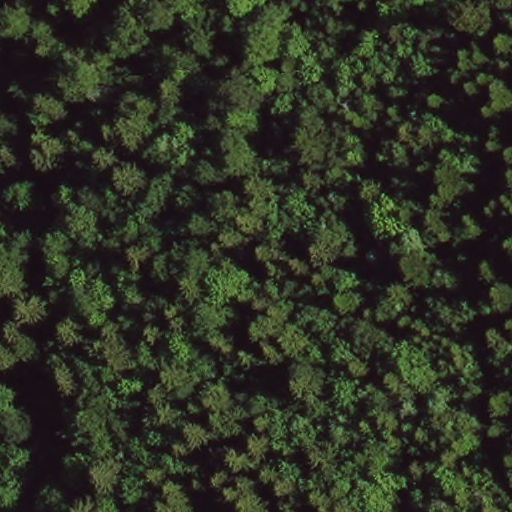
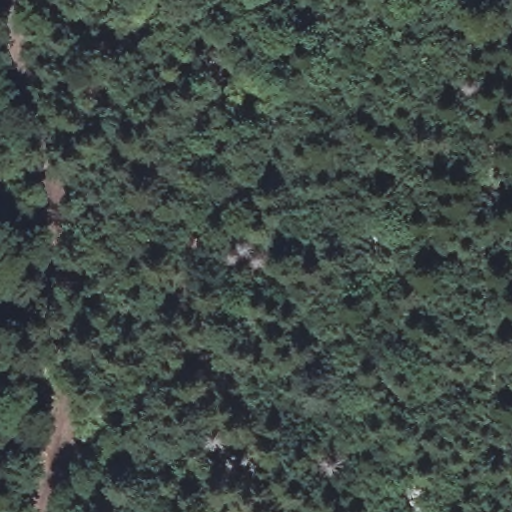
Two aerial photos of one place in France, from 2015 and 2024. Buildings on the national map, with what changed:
[]

